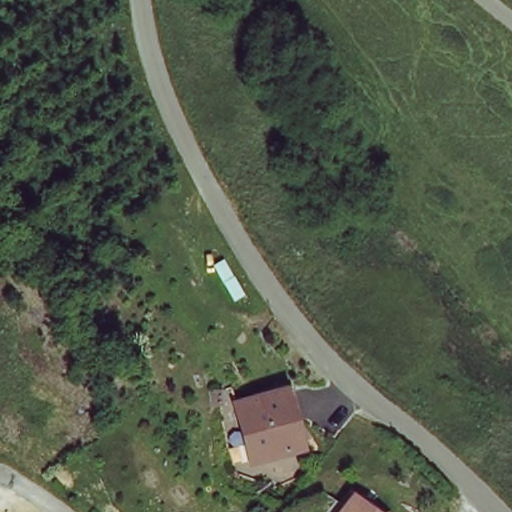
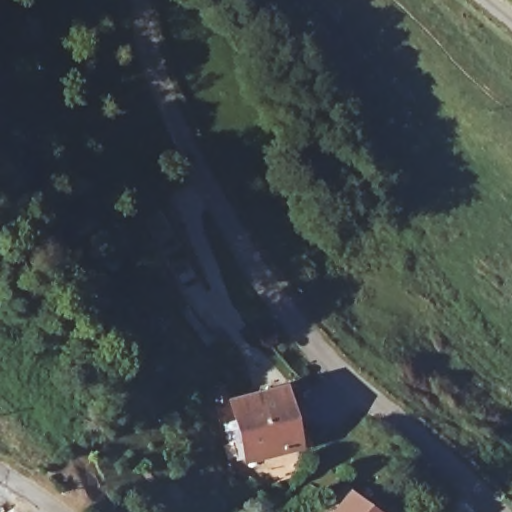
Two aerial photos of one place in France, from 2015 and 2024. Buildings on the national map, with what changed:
unchanged [(247,460),(237,400),(287,392),(297,452),(247,460)]
unchanged [(372,512),(334,512),(353,493),(372,512)]

